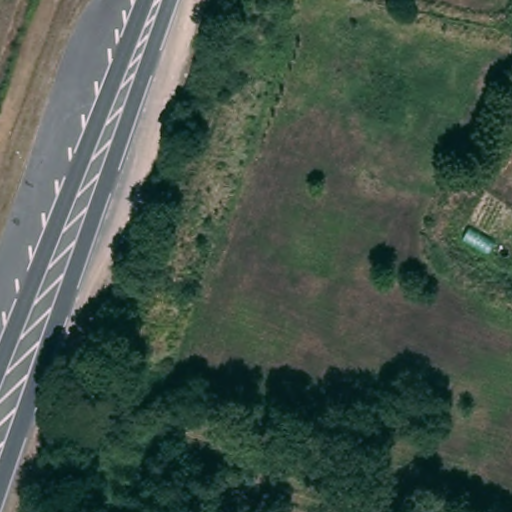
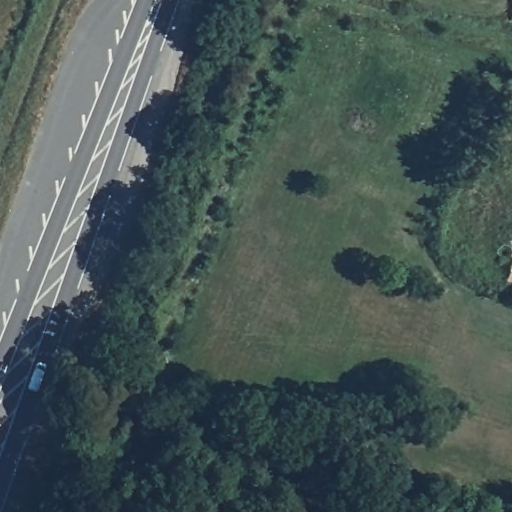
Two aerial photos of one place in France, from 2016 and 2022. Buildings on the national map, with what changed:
unchanged [(512,160),(490,151),(512,96),(512,160)]
unchanged [(396,161),(468,173),(467,186),(392,174),(396,161)]

